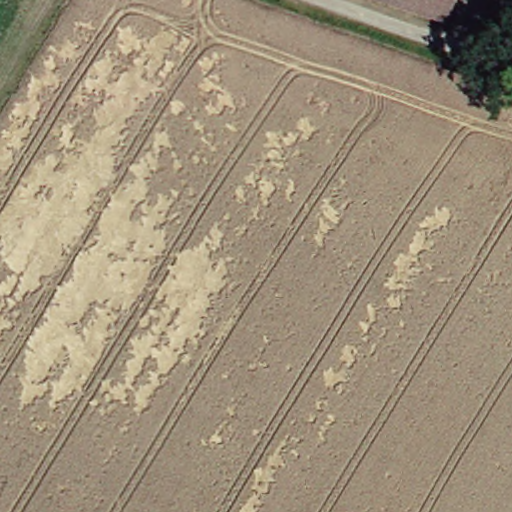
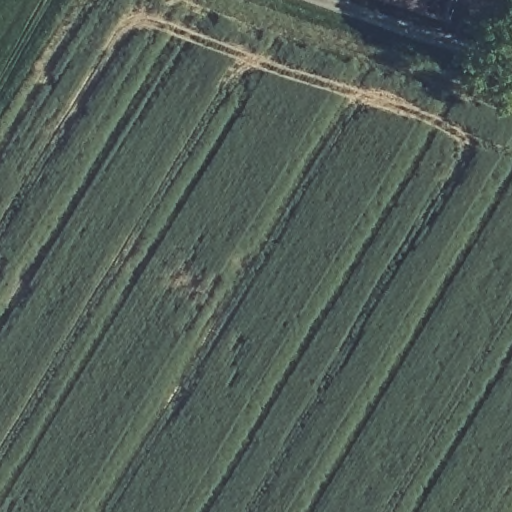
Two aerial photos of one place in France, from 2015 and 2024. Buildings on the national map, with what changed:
unchanged [(364,0),(454,0),(453,3),(444,29),(364,0)]

